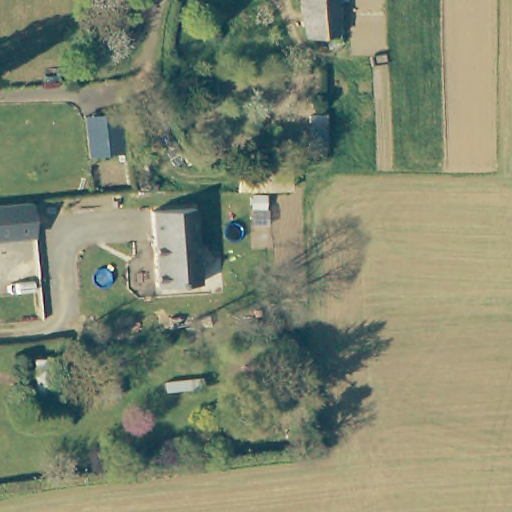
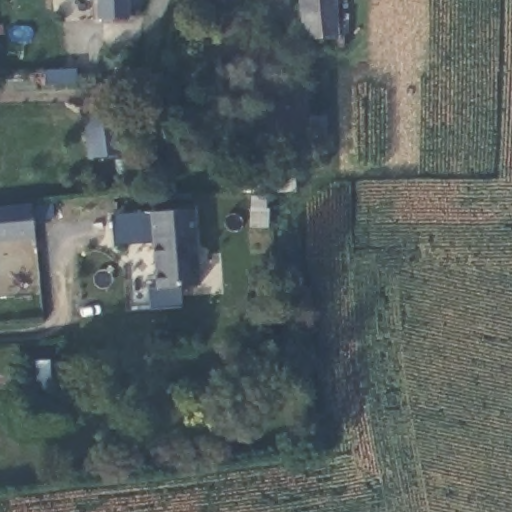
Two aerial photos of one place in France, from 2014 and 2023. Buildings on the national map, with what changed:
new [(100,0),(130,0),(131,17),(100,18),(100,0)]
unchanged [(342,40),(311,42),(303,10),(302,0),(340,0),(342,40)]
unchanged [(65,61),(66,43),(86,45),(86,53),(85,62),(74,60),(65,61)]
unchanged [(335,154),(313,152),(316,116),(337,117),(335,154)]
unchanged [(0,205),(39,201),(43,234),(0,239),(0,205)]
unchanged [(159,213),(199,211),(206,286),(166,290),(159,213)]
unchanged [(62,406),(39,405),(37,361),(60,361),(62,406)]

